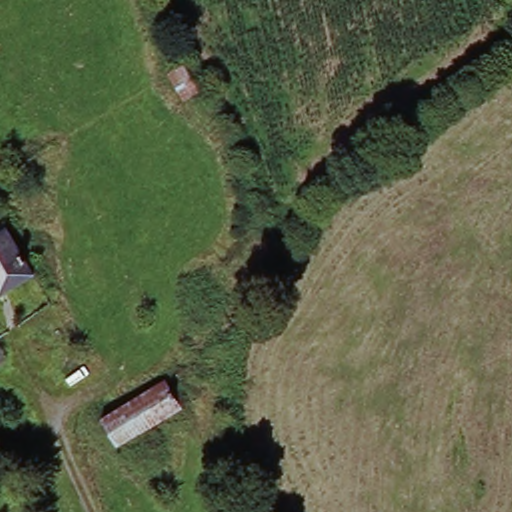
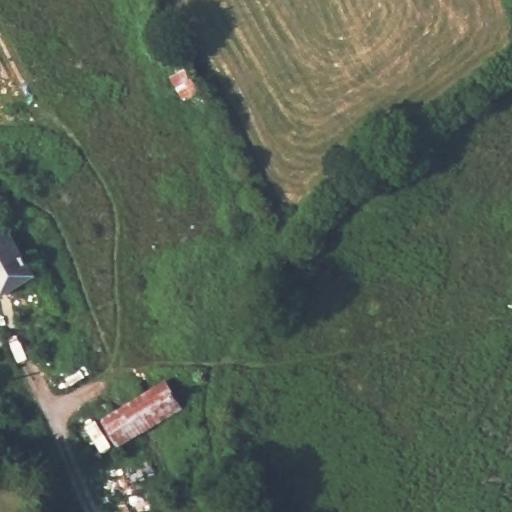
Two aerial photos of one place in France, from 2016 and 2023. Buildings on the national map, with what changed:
unchanged [(204,85),(190,95),(173,71),(189,62),(204,85)]
unchanged [(32,272),(0,292),(0,218),(32,272)]
unchanged [(168,380),(182,407),(117,445),(102,418),(168,380)]

